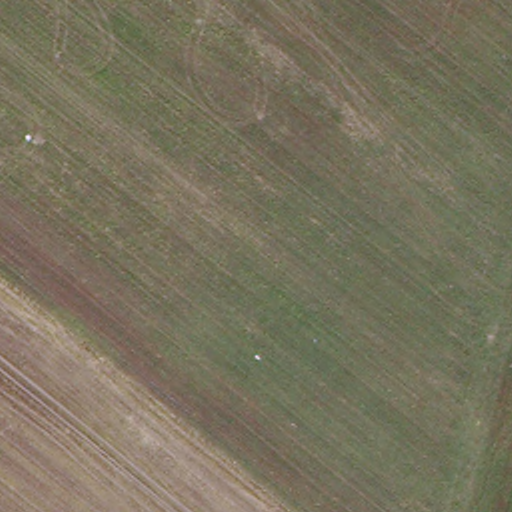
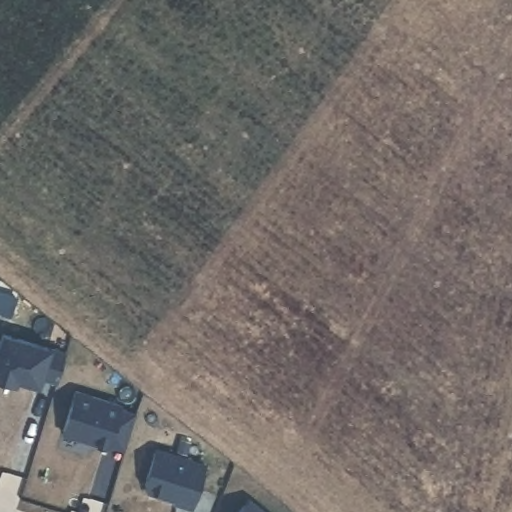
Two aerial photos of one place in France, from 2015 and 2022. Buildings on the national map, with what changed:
new [(2,337),(64,356),(56,383),(39,378),(37,387),(15,381),(14,386),(0,381),(0,344),(2,337)]
new [(74,394),(120,407),(119,412),(135,416),(124,451),(108,447),(106,453),(89,448),(87,457),(57,449),(74,394)]
new [(156,452),(204,467),(191,510),(175,506),(175,502),(148,494),(145,487),(156,452)]
new [(261,512),(240,512),(248,502),(261,512)]

